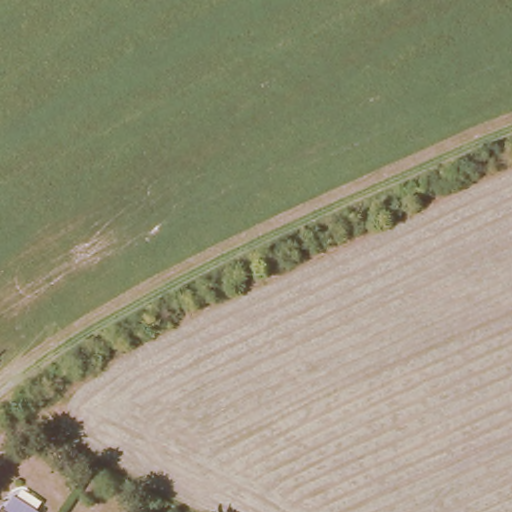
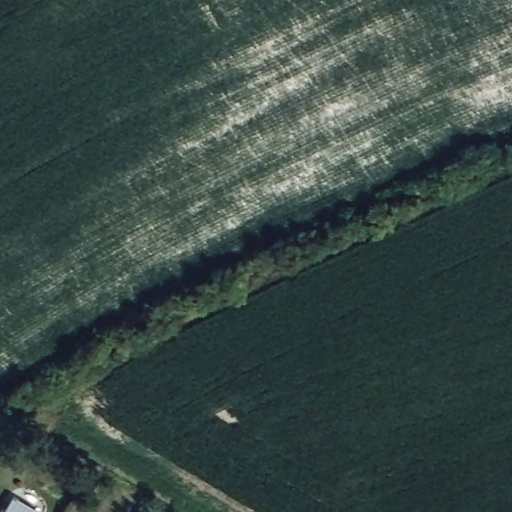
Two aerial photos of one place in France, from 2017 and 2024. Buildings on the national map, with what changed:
unchanged [(0,512),(0,509),(6,512),(0,512)]

